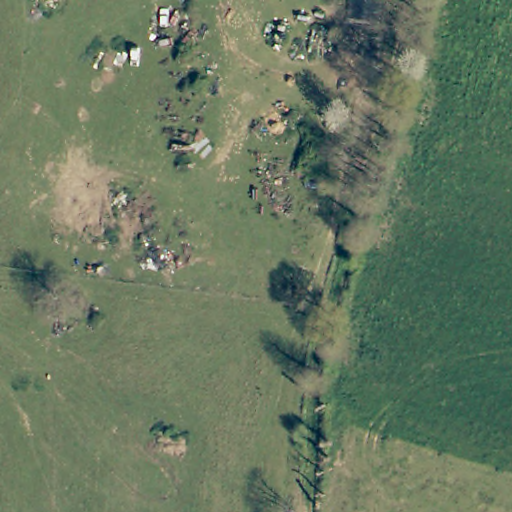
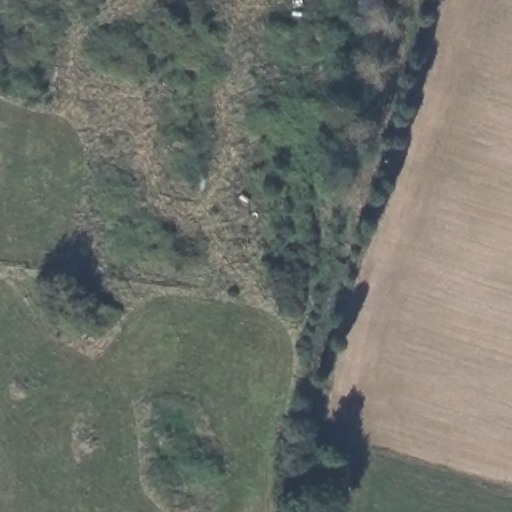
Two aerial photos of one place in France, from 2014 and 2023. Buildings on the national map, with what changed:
unchanged [(347,0),(384,0),(382,33),(345,30),(347,0)]

